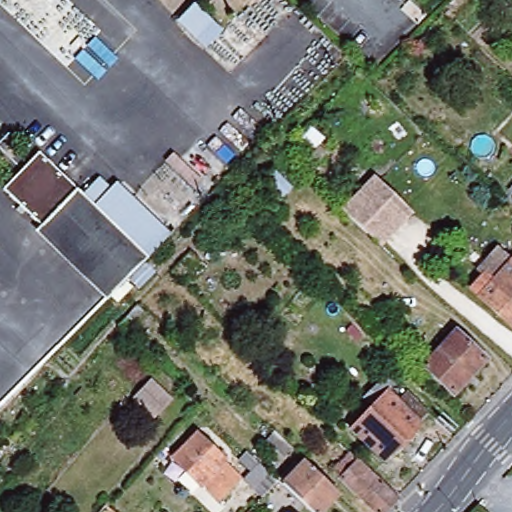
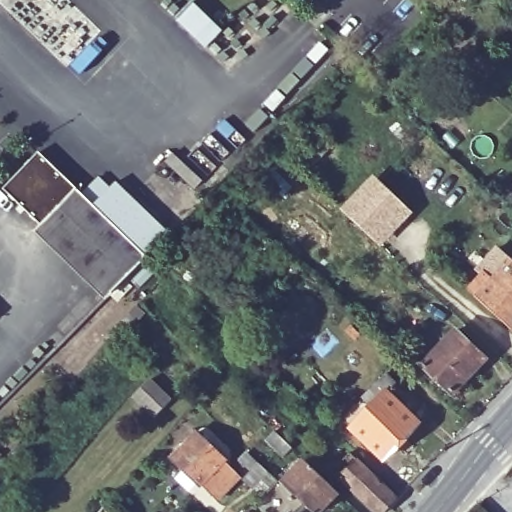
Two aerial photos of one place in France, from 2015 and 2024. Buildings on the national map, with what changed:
unchanged [(0,192),(0,190),(36,153),(80,195),(94,178),(105,188),(112,182),(167,235),(106,296),(0,192)]
unchanged [(346,215),(379,182),(407,208),(375,242),(346,215)]
unchanged [(200,257),(182,277),(174,271),(194,251),(200,257)]
unchanged [(471,289),(484,276),(479,270),(497,251),(512,262),(512,326),(471,289)]
unchanged [(146,313),(128,333),(119,326),(137,305),(146,313)]
unchanged [(427,317),(432,312),(438,317),(433,322),(427,317)]
unchanged [(352,333),(357,329),(362,334),(358,338),(352,333)]
unchanged [(487,360),(455,395),(425,366),(457,332),(487,360)]
unchanged [(375,388),(416,428),(383,465),(349,433),(369,412),(361,404),(375,388)]
unchanged [(294,448),(285,457),(268,438),(276,431),(294,448)]
unchanged [(201,443),(230,472),(207,496),(178,467),(201,443)]
unchanged [(391,512),(373,512),(330,472),(334,467),(339,471),(351,458),(399,504),(391,512)]
unchanged [(327,512),(311,512),(285,488),(307,466),(341,497),(327,512)]
unchanged [(264,502),(248,487),(265,470),(282,485),(264,502)]

